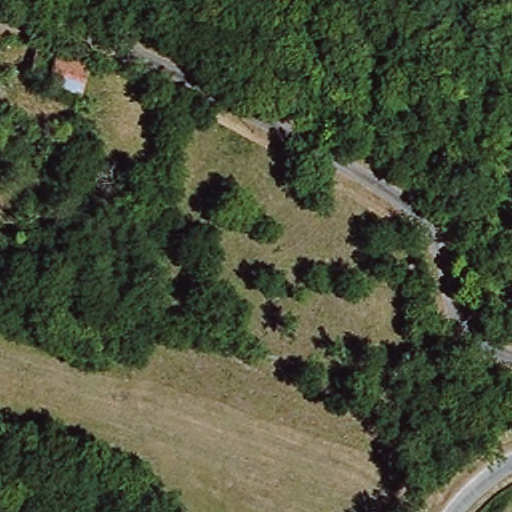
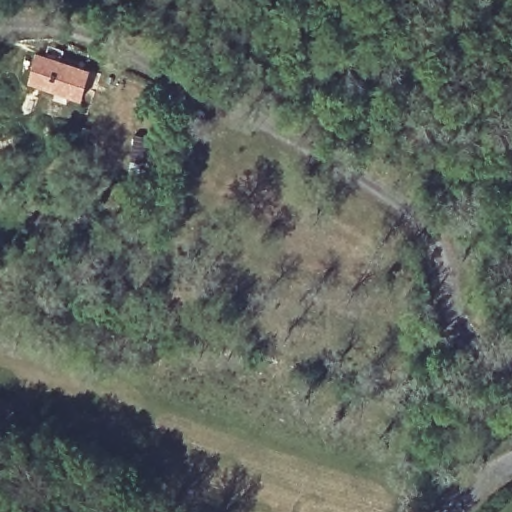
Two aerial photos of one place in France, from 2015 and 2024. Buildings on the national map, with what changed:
new [(29,83),(39,51),(92,69),(82,99),(29,83)]

